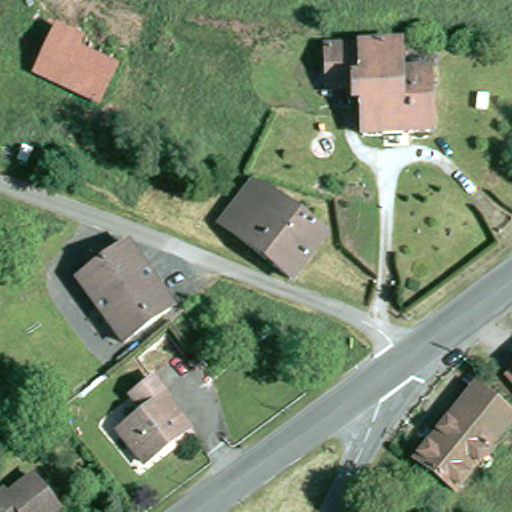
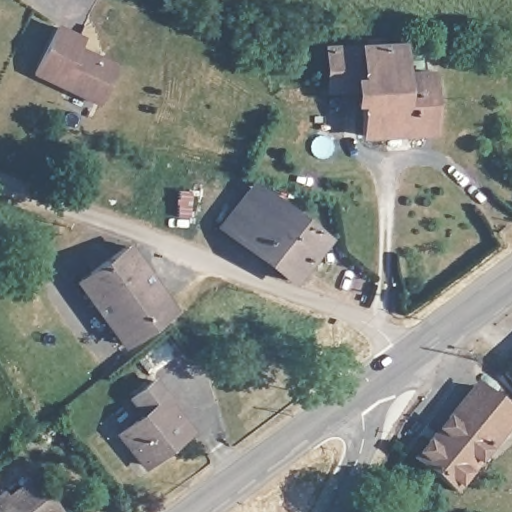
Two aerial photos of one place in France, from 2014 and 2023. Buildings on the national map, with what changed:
unchanged [(82,39),(78,49),(117,66),(98,106),(33,76),(56,24),(82,39)]
unchanged [(403,86),(433,84),(436,140),(368,144),(364,83),(343,84),(344,102),(329,103),(326,60),(402,56),(403,86)]
unchanged [(296,284),(224,229),(251,197),(258,188),(293,213),(329,240),(296,284)]
unchanged [(123,348),(78,285),(126,252),(171,314),(123,348)]
unchanged [(504,380),(512,372),(512,388),(504,380)]
unchanged [(118,439),(143,421),(131,404),(154,388),(166,404),(164,407),(187,437),(143,471),(118,439)]
unchanged [(512,426),(512,428),(461,495),(420,464),(475,397),(512,426)]
unchanged [(10,501),(34,481),(60,512),(0,512),(0,500),(6,496),(10,501)]

